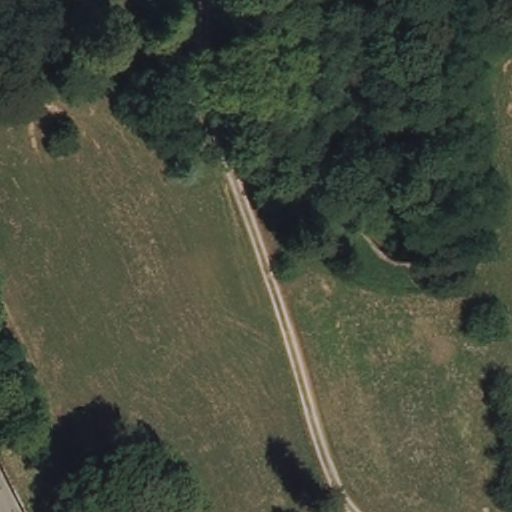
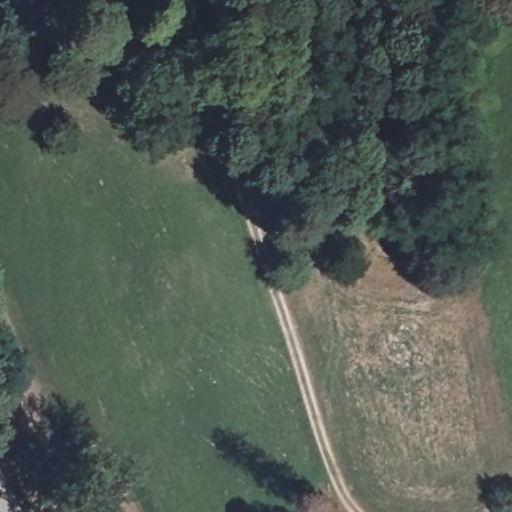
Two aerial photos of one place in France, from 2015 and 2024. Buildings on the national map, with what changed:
[]

